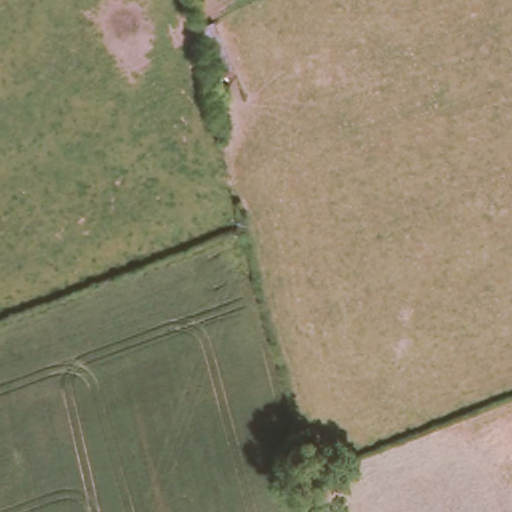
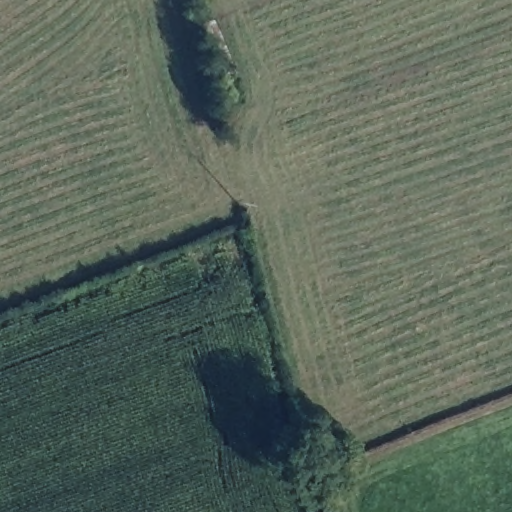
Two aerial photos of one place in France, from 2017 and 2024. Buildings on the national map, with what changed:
unchanged [(247,99),(224,104),(194,29),(216,24),(247,99)]

